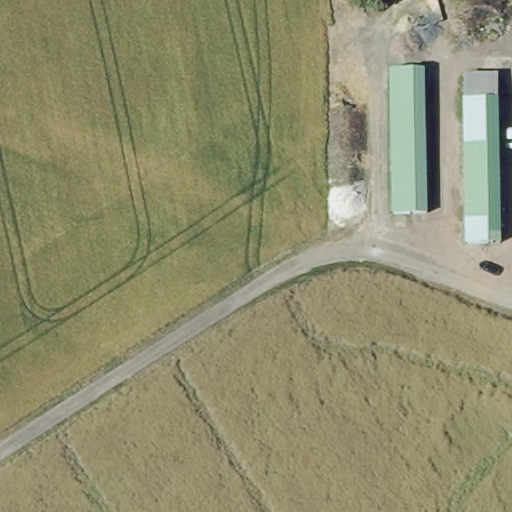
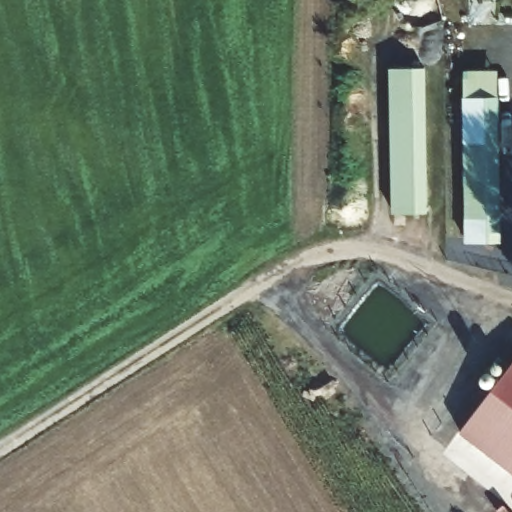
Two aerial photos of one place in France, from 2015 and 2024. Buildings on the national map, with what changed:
unchanged [(427,62),(430,207),(398,208),(392,62),(427,62)]
unchanged [(499,67),(500,237),(469,237),(465,67),(499,67)]
new [(512,366),(512,472),(460,433),(512,366)]

